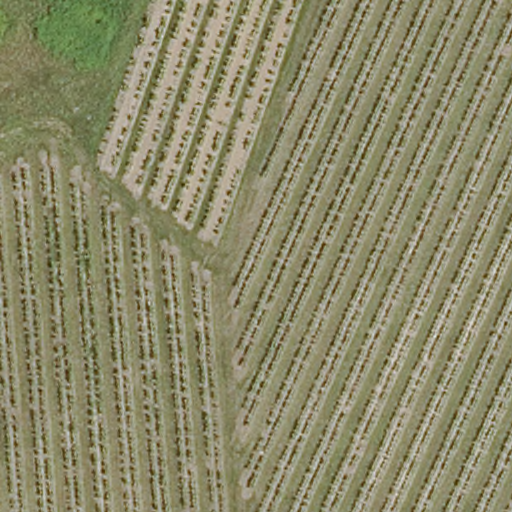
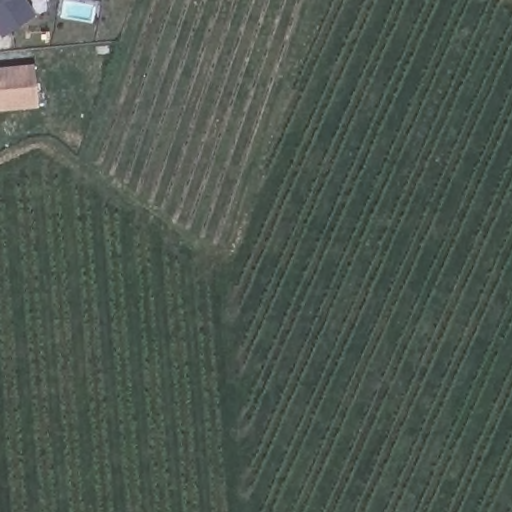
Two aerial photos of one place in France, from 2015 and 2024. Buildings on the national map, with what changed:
new [(0,38),(0,0),(26,0),(35,15),(0,38)]
new [(0,110),(0,67),(32,64),(37,106),(0,110)]

